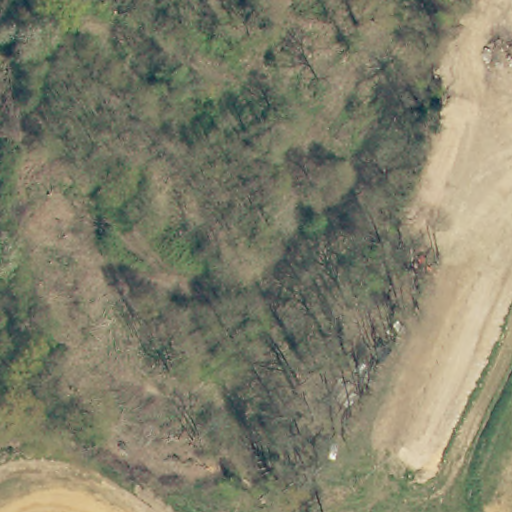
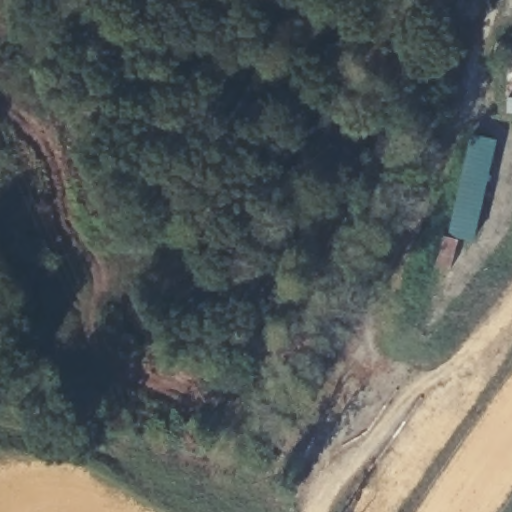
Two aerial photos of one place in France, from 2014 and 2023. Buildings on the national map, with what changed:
new [(473,241),(447,236),(469,135),(496,141),(473,241)]
demolished [(464,259),(444,243),(494,178),(512,186),(512,192),(464,259)]

